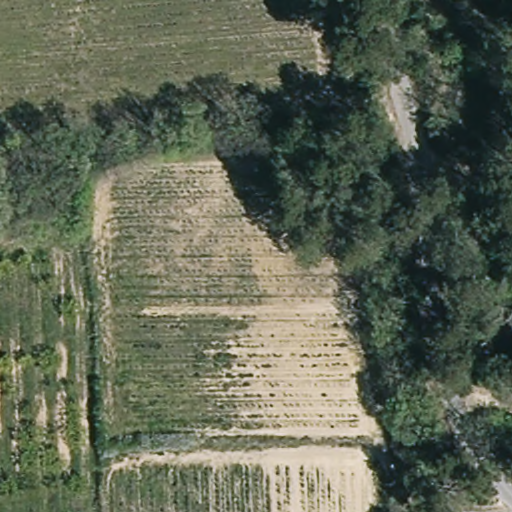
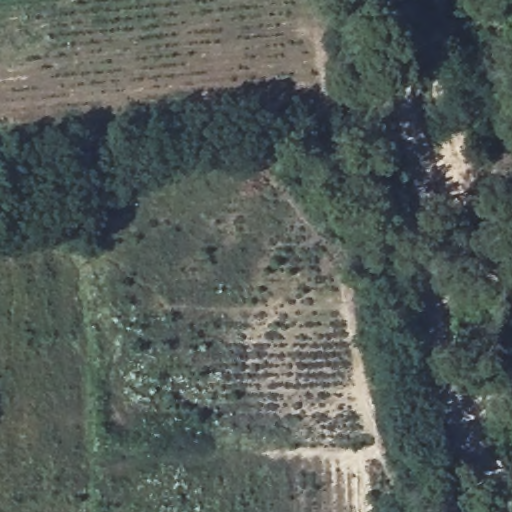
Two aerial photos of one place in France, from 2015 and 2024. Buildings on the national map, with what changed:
[]

